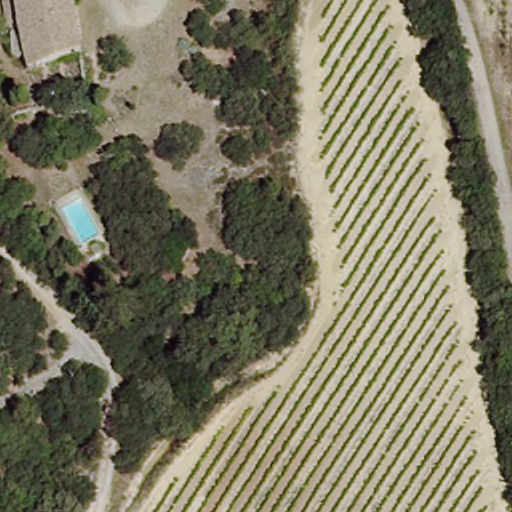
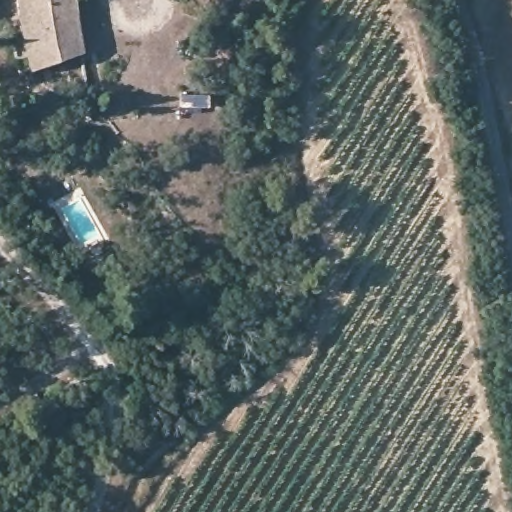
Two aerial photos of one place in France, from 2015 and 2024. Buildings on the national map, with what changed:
unchanged [(83,55),(30,75),(28,61),(20,23),(17,0),(75,0),(83,55)]
unchanged [(158,295),(156,279),(175,273),(178,293),(158,295)]

